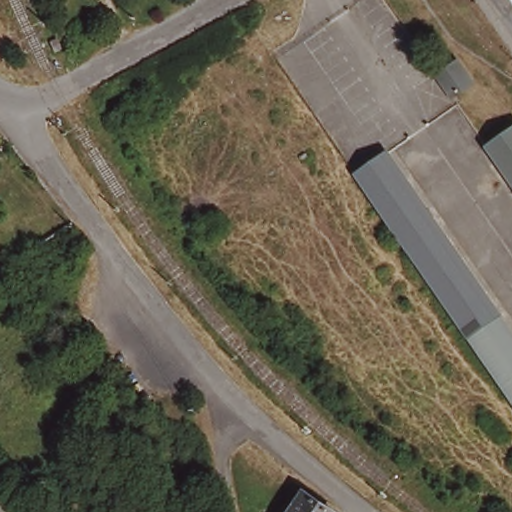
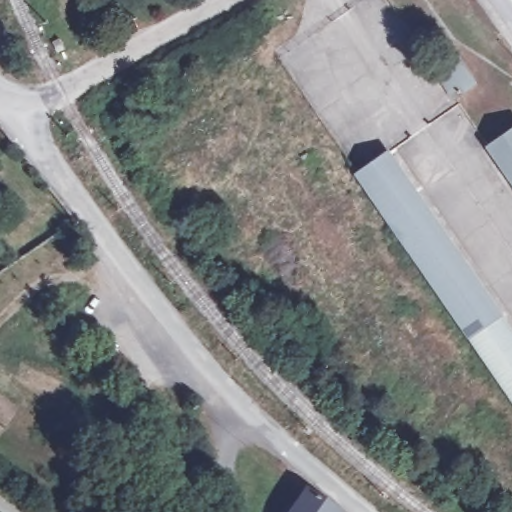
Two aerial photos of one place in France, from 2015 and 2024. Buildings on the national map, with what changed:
unchanged [(478,82),(456,98),(440,75),(464,60),(478,82)]
unchanged [(494,152),(512,140),(512,178),(494,152)]
unchanged [(357,173),(389,151),(512,330),(512,398),(357,173)]
unchanged [(291,510),(305,493),(332,512),(282,512),(286,507),(291,510)]

